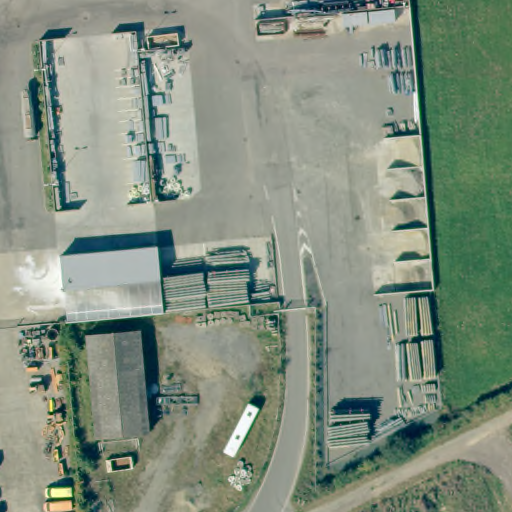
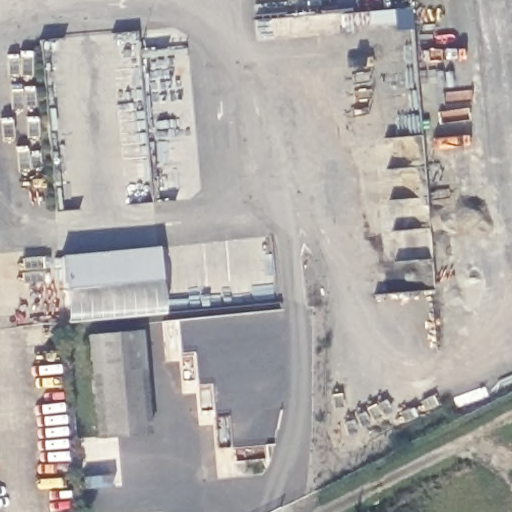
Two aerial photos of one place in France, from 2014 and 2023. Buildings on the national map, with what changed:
unchanged [(151,229),(154,261),(56,269),(54,237),(151,229)]
unchanged [(154,261),(156,295),(59,302),(56,269),(154,261)]
unchanged [(89,330),(144,325),(152,427),(100,432),(89,330)]

